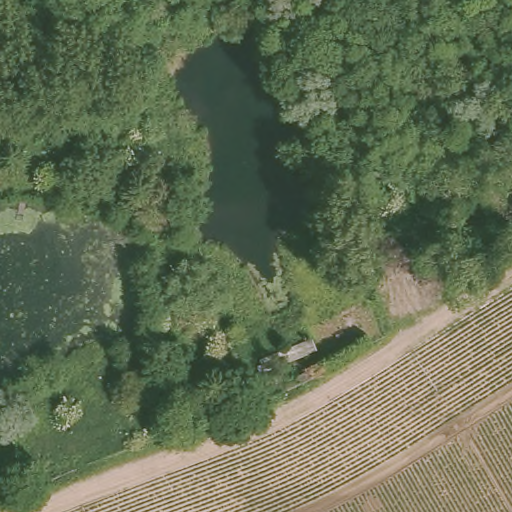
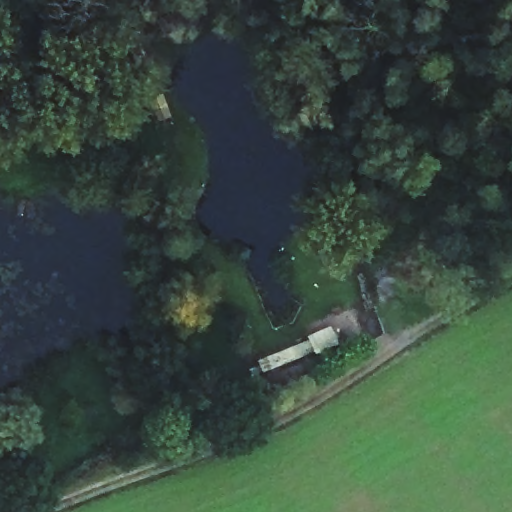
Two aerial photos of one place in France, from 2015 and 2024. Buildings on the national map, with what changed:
unchanged [(318,352),(265,371),(259,356),(313,336),(318,352)]

